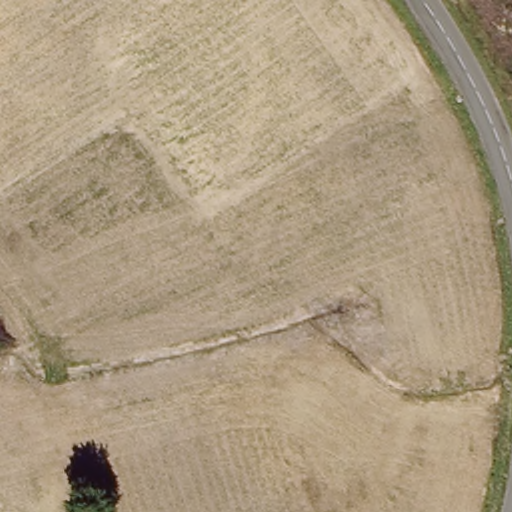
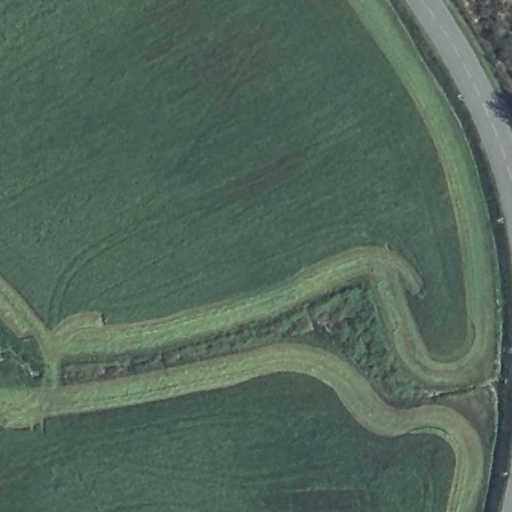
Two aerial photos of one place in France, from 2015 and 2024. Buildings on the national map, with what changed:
[]

